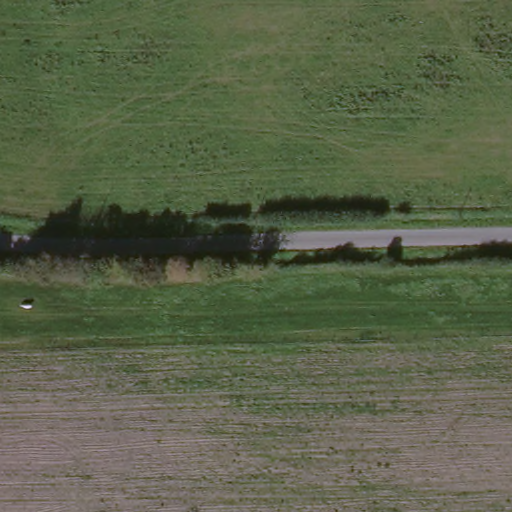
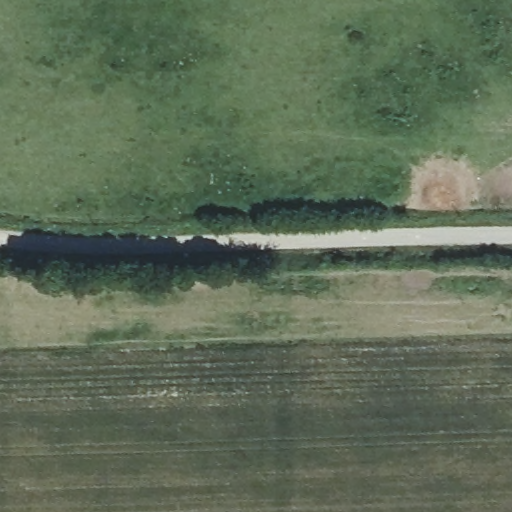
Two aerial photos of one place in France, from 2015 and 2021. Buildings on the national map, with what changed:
[]

